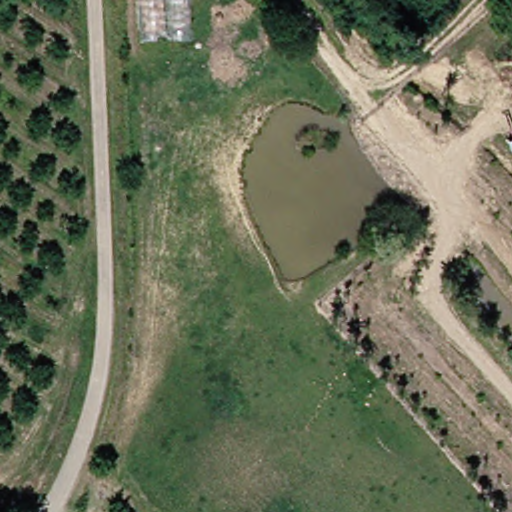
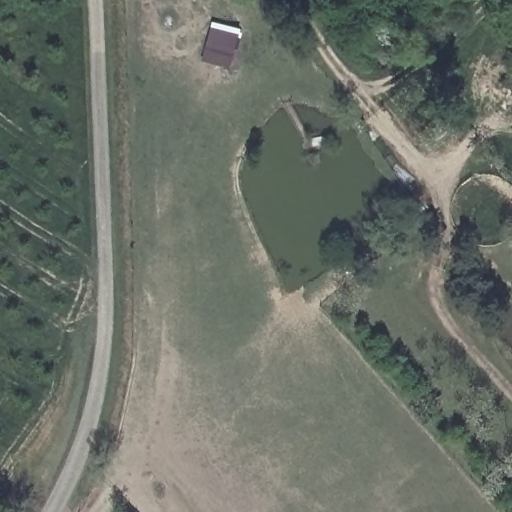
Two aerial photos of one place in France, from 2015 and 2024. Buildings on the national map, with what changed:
demolished [(142,43),(141,0),(192,0),(193,41),(142,43)]

